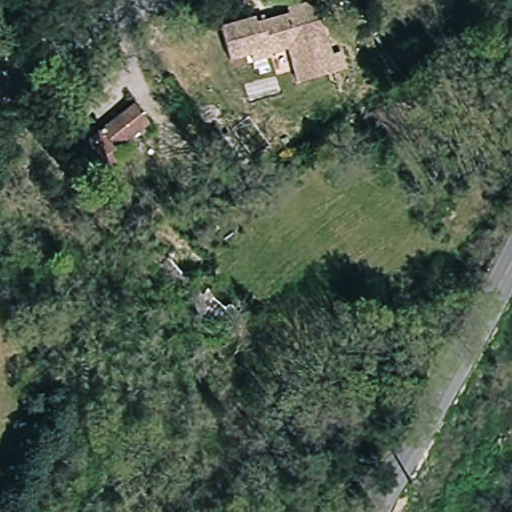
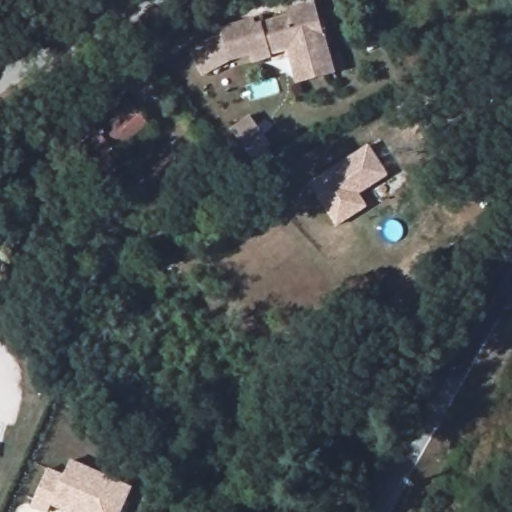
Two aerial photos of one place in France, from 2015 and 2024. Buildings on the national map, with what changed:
unchanged [(296,86),(289,56),(253,64),(252,59),(229,63),(221,26),(316,4),(335,74),(296,86)]
unchanged [(77,148),(132,105),(145,122),(111,147),(124,164),(101,181),(77,148)]
new [(368,205),(336,226),(309,184),(369,145),(388,175),(360,194),(368,205)]
unchanged [(355,425),(338,457),(313,446),(330,412),(355,425)]
new [(133,487),(121,512),(65,512),(52,506),(49,512),(42,512),(31,507),(49,467),(65,473),(71,460),(133,487)]

